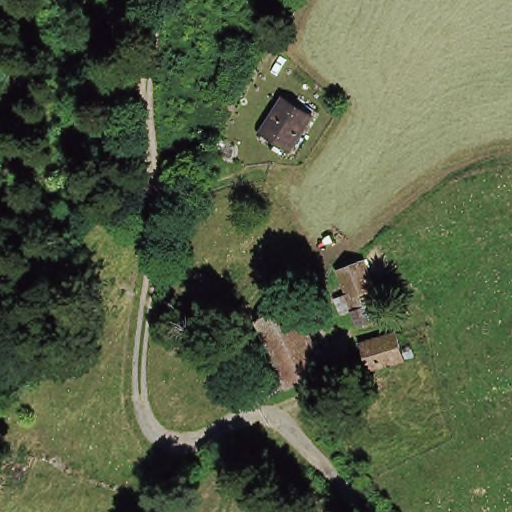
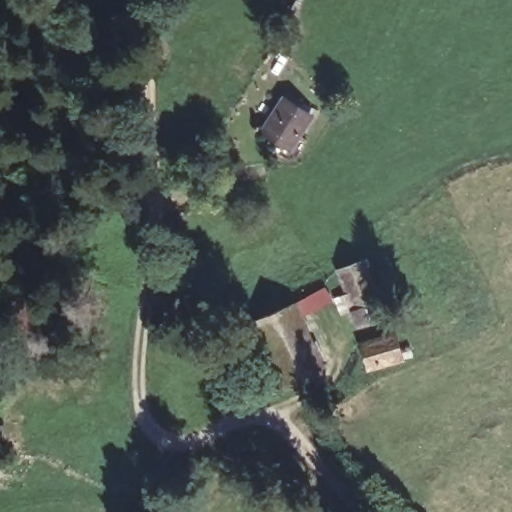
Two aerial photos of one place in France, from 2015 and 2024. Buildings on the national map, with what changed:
unchanged [(311,119),(292,151),(265,135),(285,103),(311,119)]
unchanged [(349,306),(344,294),(334,264),(360,258),(368,285),(372,297),(349,306)]
unchanged [(275,337),(263,311),(293,298),(306,324),(310,336),(323,364),(289,378),(280,350),(275,337)]
unchanged [(376,369),(369,347),(403,339),(410,361),(376,369)]

